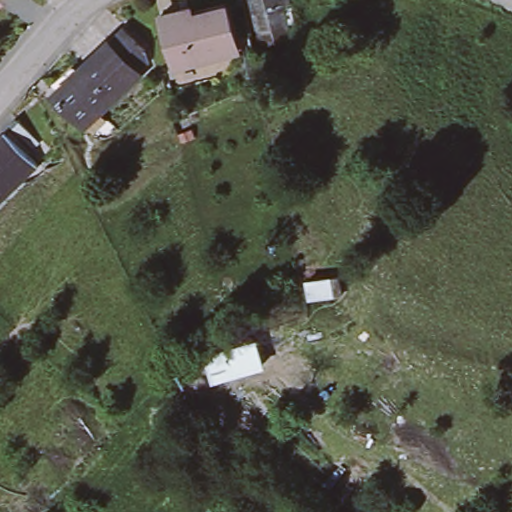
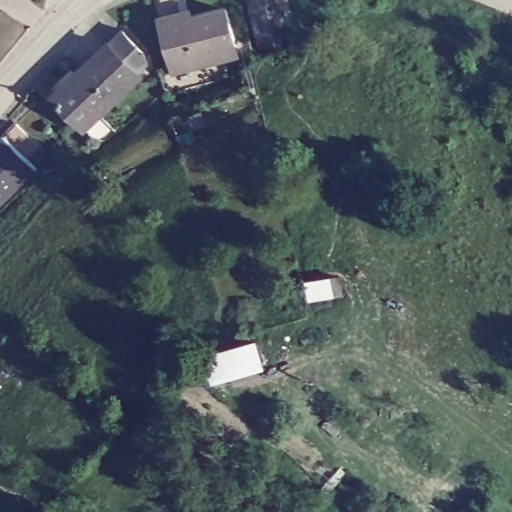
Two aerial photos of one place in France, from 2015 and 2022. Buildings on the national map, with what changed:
unchanged [(255,37),(247,0),(279,0),(285,31),(255,37)]
unchanged [(170,60),(159,17),(181,12),(182,20),(224,10),(234,55),(191,65),(172,70),(170,60)]
unchanged [(93,114),(89,109),(73,124),(47,96),(102,43),(117,29),(138,51),(123,65),(133,75),(93,114)]
unchanged [(0,200),(0,135),(11,124),(32,147),(21,159),(31,171),(0,200)]
unchanged [(300,277),(339,268),(347,300),(306,308),(300,277)]
unchanged [(202,355),(274,333),(282,366),(263,372),(262,365),(210,382),(202,355)]

